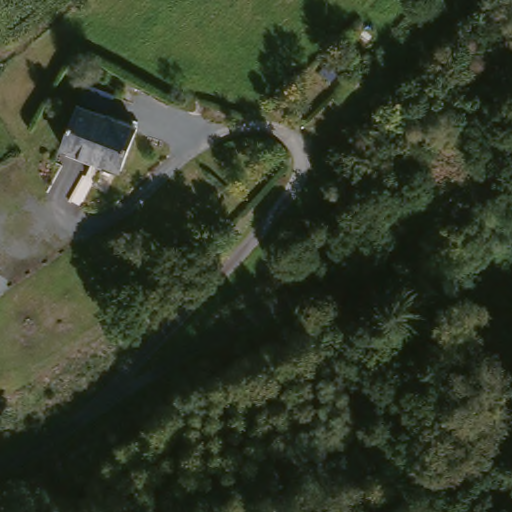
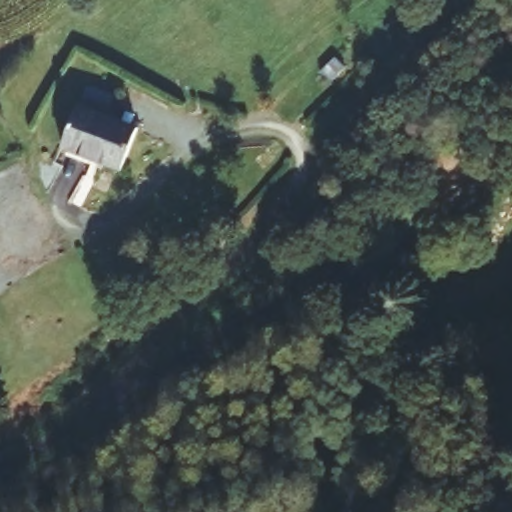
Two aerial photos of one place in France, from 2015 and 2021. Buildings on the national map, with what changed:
unchanged [(71,145),(88,102),(146,126),(129,168),(71,145)]

